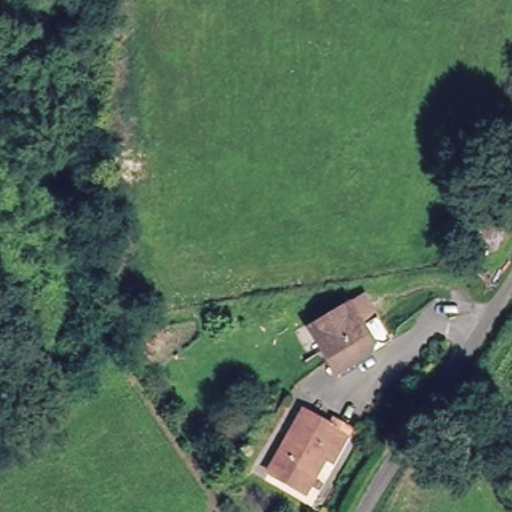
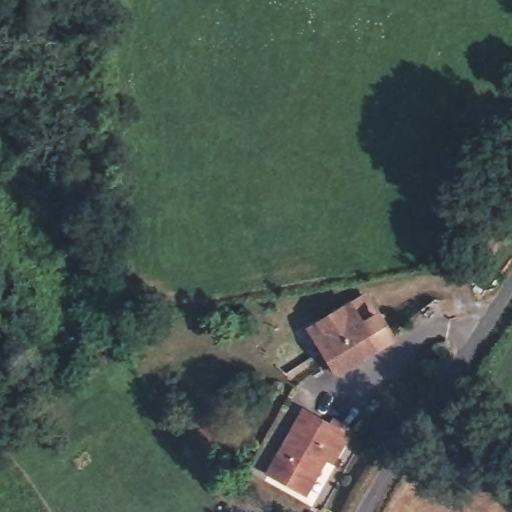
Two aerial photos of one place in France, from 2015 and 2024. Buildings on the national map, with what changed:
unchanged [(470,243),(485,205),(511,213),(500,246),(497,254),(486,249),(470,243)]
unchanged [(369,354),(336,375),(307,331),(347,305),(360,297),(374,318),(361,327),(371,342),(369,354)]
unchanged [(351,440),(338,465),(327,461),(308,496),(273,476),(308,416),(351,440)]

